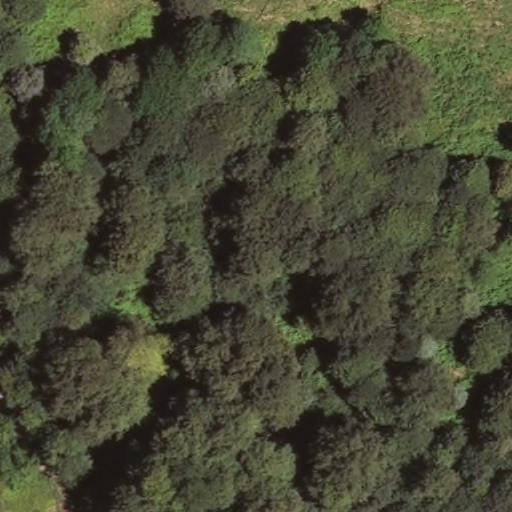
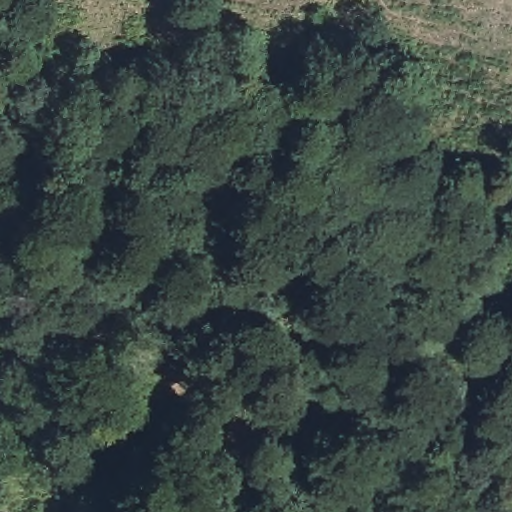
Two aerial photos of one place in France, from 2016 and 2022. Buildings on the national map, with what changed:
[]

